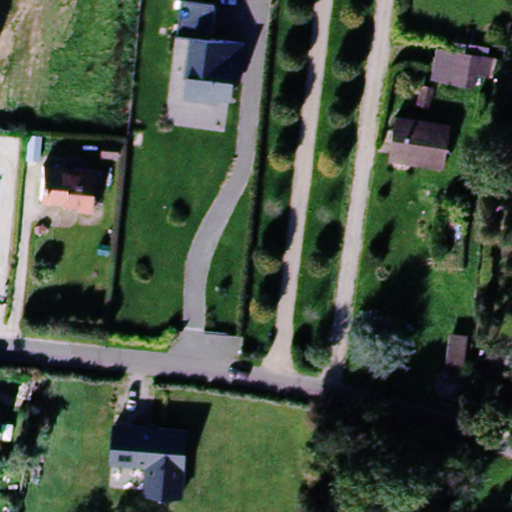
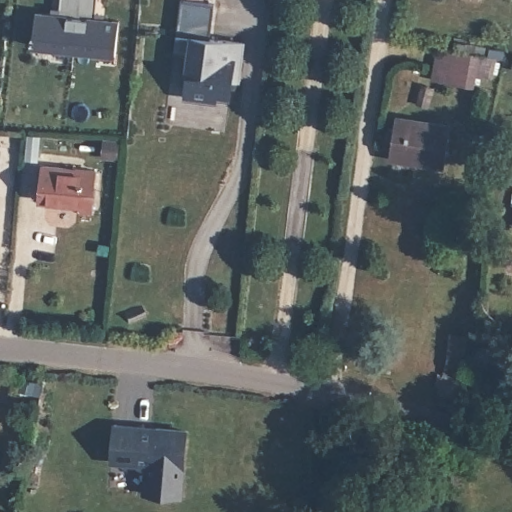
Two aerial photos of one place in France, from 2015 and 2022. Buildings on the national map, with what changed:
new [(96,17),(119,20),(118,55),(31,47),(35,11),(59,12),(61,0),(97,0),(96,17)]
unchanged [(216,0),(211,39),(243,41),(241,79),(233,78),(231,98),(218,96),(218,102),(184,98),(184,79),(186,48),(176,47),(182,0),(211,0),(216,0)]
unchanged [(478,87),(466,85),(433,78),(439,44),(473,51),(483,53),(478,87)]
unchanged [(444,165),(388,158),(393,117),(448,128),(444,165)]
unchanged [(89,205),(35,201),(38,165),(92,169),(89,205)]
unchanged [(449,326),(484,334),(482,369),(446,369),(449,326)]
unchanged [(0,406),(1,406),(0,425),(0,406)]
unchanged [(178,496),(141,494),(143,466),(106,464),(109,427),(181,432),(178,496)]

